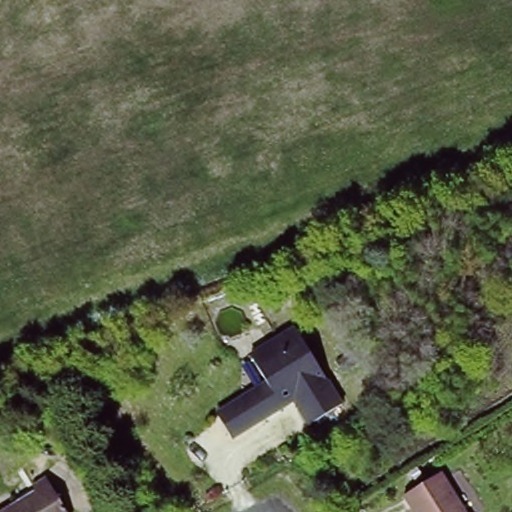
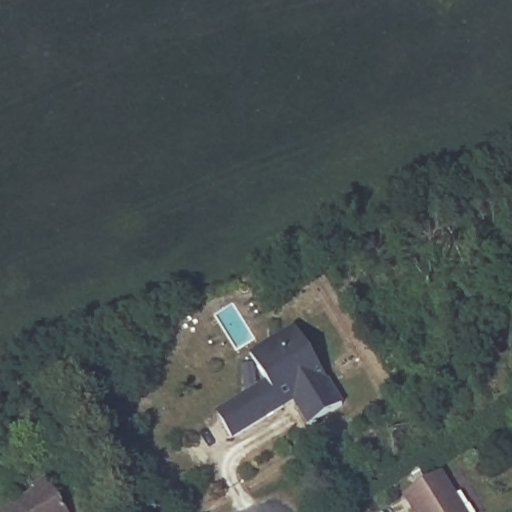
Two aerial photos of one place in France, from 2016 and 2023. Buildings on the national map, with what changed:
unchanged [(267,372),(252,345),(280,328),(297,318),(302,327),(343,396),(310,416),(295,391),(284,398),(232,429),(223,413),(217,402),(267,372)]
unchanged [(440,470),(467,512),(418,512),(404,490),(440,470)]
unchanged [(32,489),(47,481),(66,512),(11,512),(37,497),(32,489)]

